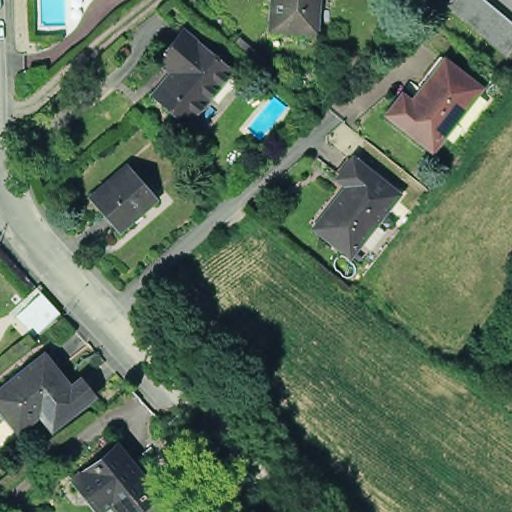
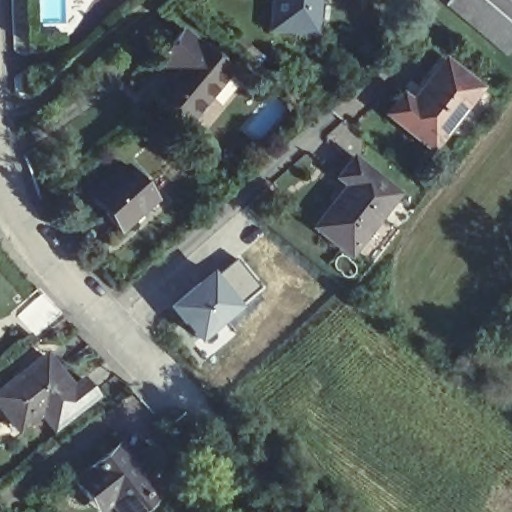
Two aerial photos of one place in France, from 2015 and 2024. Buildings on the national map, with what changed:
unchanged [(316,32),(273,28),(275,0),(319,0),(316,32)]
unchanged [(506,56),(447,5),(451,0),(484,0),(512,24),(512,48),(506,56)]
unchanged [(238,71),(194,123),(161,94),(179,72),(165,60),(191,30),(238,71)]
unchanged [(405,99),(414,107),(448,63),(484,93),(434,154),(389,118),(405,99)]
unchanged [(352,258),(318,231),(343,202),(346,203),(353,192),(340,181),(357,161),(402,197),(352,258)]
unchanged [(159,200),(124,232),(94,199),(129,167),(159,200)]
new [(238,257),(264,288),(242,307),(216,273),(238,257)]
new [(213,268),(216,273),(242,307),(197,343),(166,305),(213,268)]
unchanged [(35,335),(17,316),(42,292),(61,313),(35,335)]
unchanged [(49,426),(36,410),(18,425),(6,411),(1,415),(0,414),(0,385),(40,354),(66,386),(77,377),(90,393),(49,426)]
unchanged [(113,459),(151,507),(144,512),(83,512),(67,495),(113,459)]

